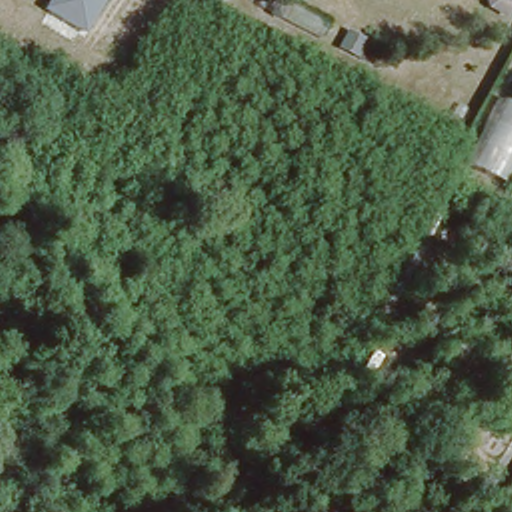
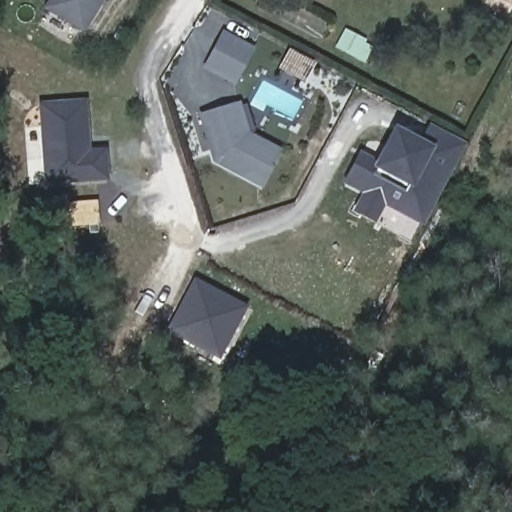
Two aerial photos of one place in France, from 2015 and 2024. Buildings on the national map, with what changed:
unchanged [(45,8),(50,0),(104,0),(85,32),(45,8)]
new [(277,0),(280,1),(281,0),(300,0),(335,18),(323,40),(257,6),(260,0),(277,0)]
unchanged [(487,0),(505,0),(501,8),(487,0)]
new [(368,48),(371,50),(364,64),(335,48),(345,29),(371,43),(368,48)]
new [(236,86),(204,69),(222,31),(256,49),(236,86)]
new [(45,163),(40,104),(85,100),(89,135),(90,148),(85,149),(106,147),(109,177),(65,181),(47,182),(45,163)]
new [(262,187),(214,163),(197,115),(240,103),(250,134),(282,149),(262,187)]
new [(460,150),(423,219),(405,209),(401,215),(345,185),(359,160),(376,169),(394,135),(418,149),(427,132),(460,150)]
new [(381,204),(372,222),(355,213),(365,196),(381,204)]
new [(245,304),(220,356),(168,330),(194,279),(245,304)]
unchanged [(512,479),(512,509),(498,500),(512,479)]

